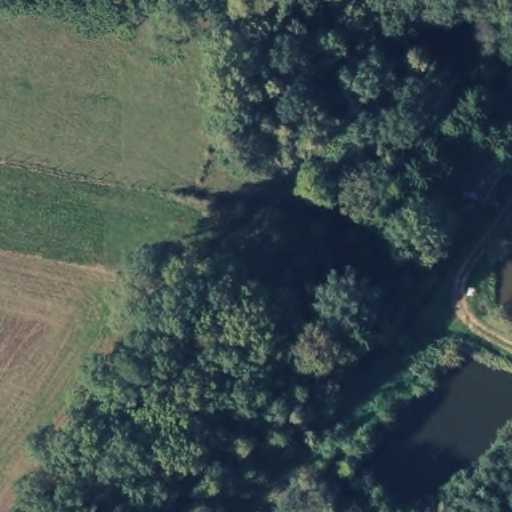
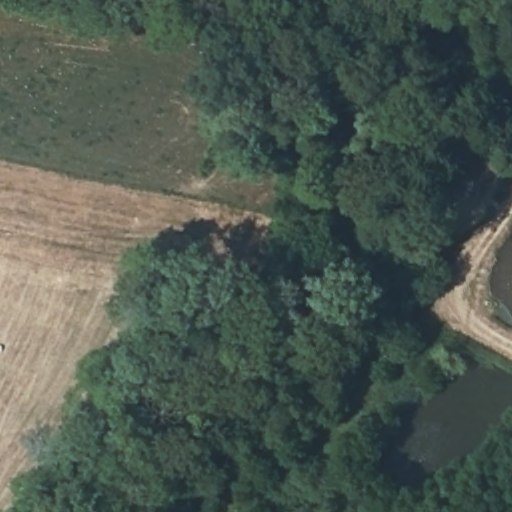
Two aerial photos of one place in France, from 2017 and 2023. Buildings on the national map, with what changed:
unchanged [(454,175),(470,147),(507,167),(484,201),(454,175)]

